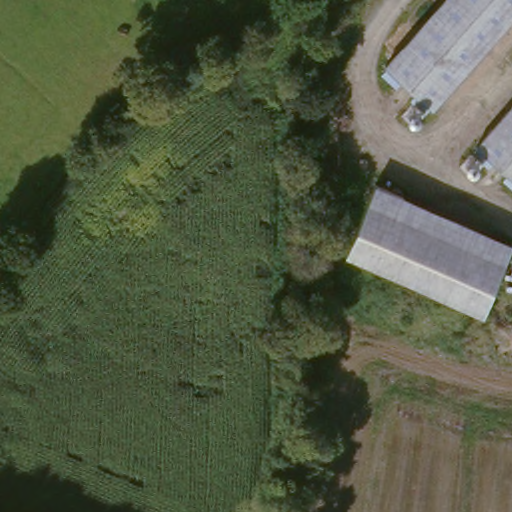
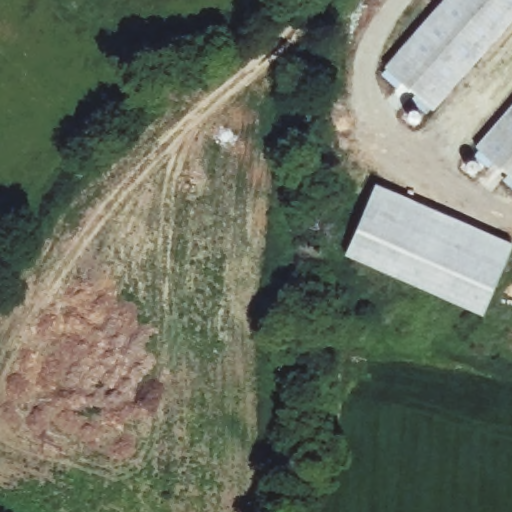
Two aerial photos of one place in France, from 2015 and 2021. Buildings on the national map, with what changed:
unchanged [(433,107),(383,62),(438,0),(512,0),(512,17),(433,107)]
unchanged [(512,99),(512,178),(473,144),(512,99)]
unchanged [(511,241),(482,313),(343,254),(374,182),(511,241)]

